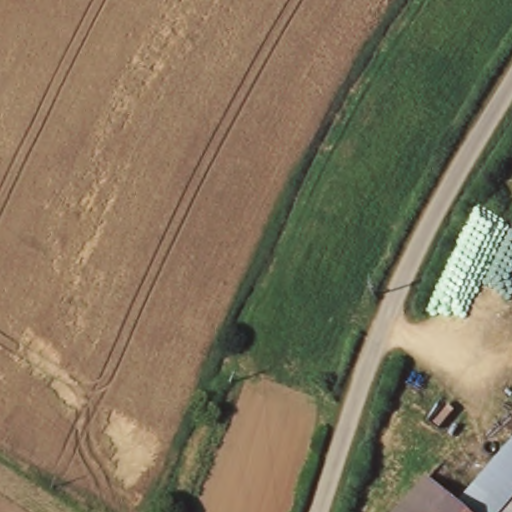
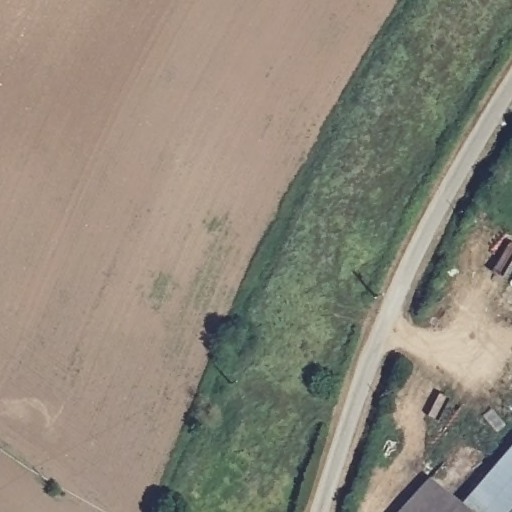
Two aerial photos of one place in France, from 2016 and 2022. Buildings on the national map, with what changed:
unchanged [(512,499),(500,512),(464,512),(454,503),(512,441),(512,499)]
unchanged [(454,503),(464,512),(386,512),(422,473),(454,503)]
unchanged [(512,512),(500,512),(512,499),(512,512)]

